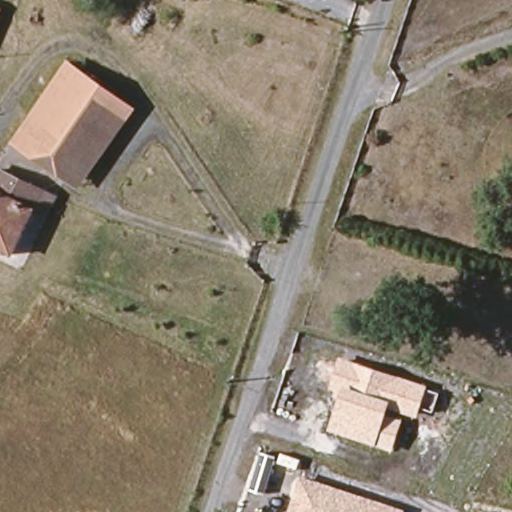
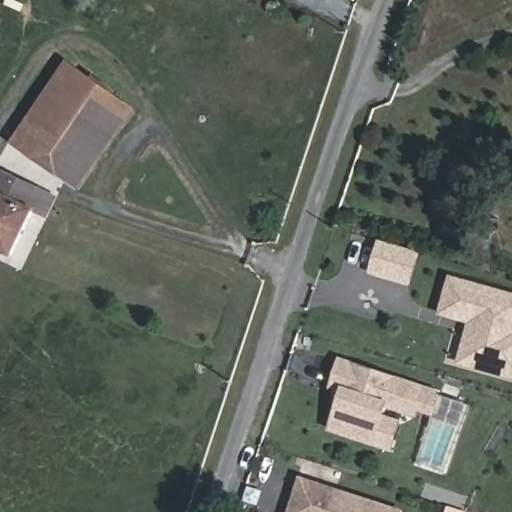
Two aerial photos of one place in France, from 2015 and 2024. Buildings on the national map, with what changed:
unchanged [(0,16),(0,11),(2,11),(0,16)]
unchanged [(124,101),(111,121),(123,129),(78,190),(15,144),(68,61),(124,101)]
unchanged [(44,221),(34,216),(11,255),(0,251),(0,168),(56,196),(44,221)]
new [(369,274),(379,239),(421,252),(411,286),(369,274)]
new [(439,318),(449,275),(512,292),(512,379),(457,362),(468,324),(439,318)]
unchanged [(434,413),(420,409),(416,420),(406,417),(394,452),(328,431),(337,399),(332,397),(334,390),(328,389),(338,357),(429,386),(428,390),(440,394),(434,413)]
unchanged [(292,512),(302,478),(405,510),(404,512),(292,512)]
demolished [(497,512),(482,512),(484,508),(497,512)]

